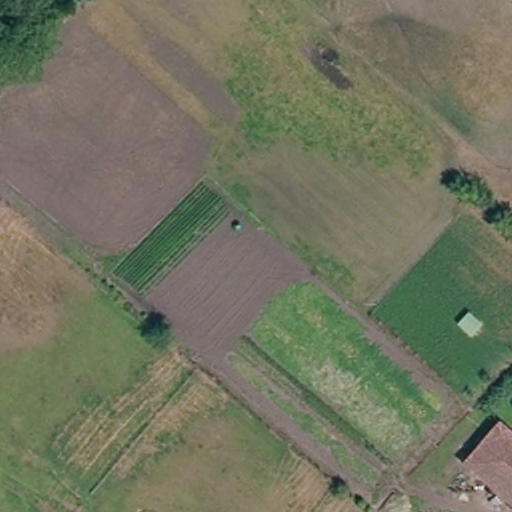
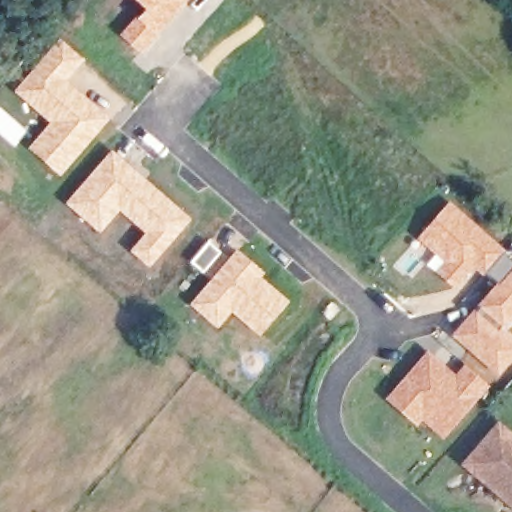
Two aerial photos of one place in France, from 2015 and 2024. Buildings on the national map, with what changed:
new [(140,54),(119,36),(143,9),(133,0),(186,0),(140,54)]
new [(59,37),(85,59),(67,80),(111,117),(59,177),(27,149),(48,122),(13,91),(59,37)]
new [(111,148),(192,218),(149,268),(129,251),(144,233),(119,212),(100,234),(64,203),(111,148)]
new [(450,200),(506,250),(485,273),(483,276),(475,269),(456,291),(425,265),(433,255),(416,239),(450,200)]
new [(208,240),(222,252),(203,274),(189,262),(208,240)]
new [(237,249),(265,273),(262,277),(290,301),(260,337),(231,314),(217,330),(189,305),(237,249)]
new [(485,273),(506,250),(512,255),(512,329),(510,332),(512,333),(512,361),(497,378),(450,335),(496,283),(485,273)]
new [(427,350),(455,373),(465,362),(490,386),(443,440),(422,422),(417,427),(384,399),(427,350)]
unchanged [(466,466),(496,428),(512,441),(512,489),(506,497),(466,466)]
unchanged [(512,489),(512,503),(506,497),(512,489)]

